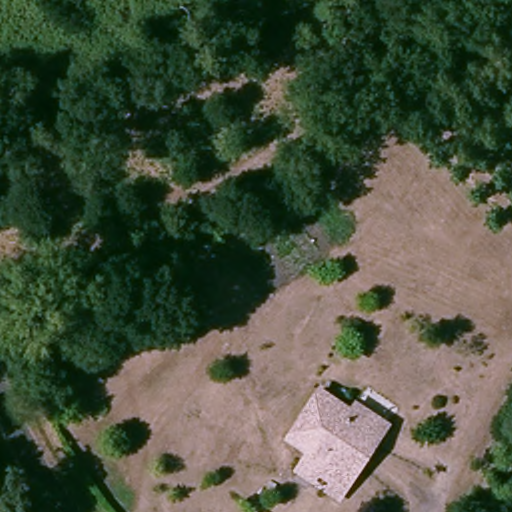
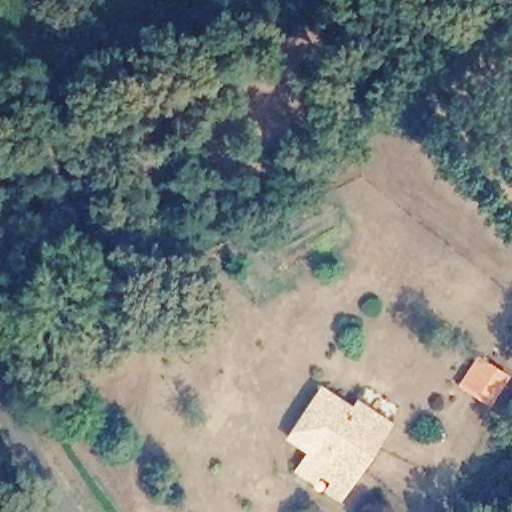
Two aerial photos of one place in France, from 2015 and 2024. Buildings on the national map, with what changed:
new [(488,408),(457,387),(477,355),(509,376),(488,408)]
unchanged [(324,386),(353,405),(360,396),(394,417),(381,439),(369,432),(357,451),(369,459),(348,494),(335,486),(341,477),(329,469),(320,482),(303,470),(313,456),(291,441),(324,386)]

